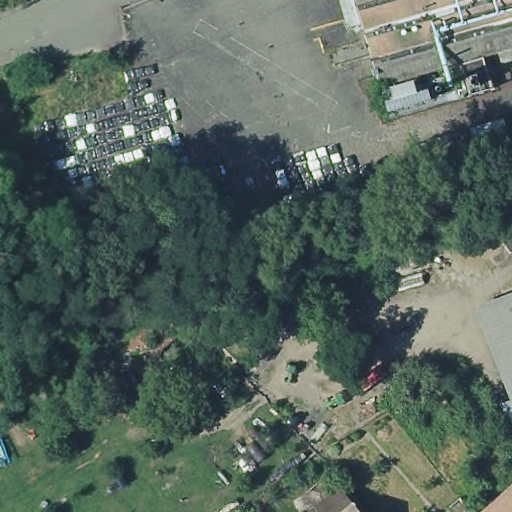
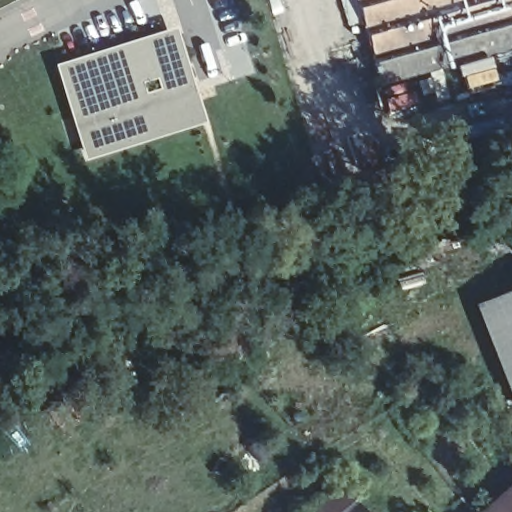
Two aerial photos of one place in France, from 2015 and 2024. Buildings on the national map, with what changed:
unchanged [(508,42),(508,40),(389,75),(371,12),(360,15),(355,0),(512,0),(512,51),(511,51),(508,42)]
new [(179,30),(209,124),(84,162),(56,65),(179,30)]
unchanged [(493,47),(502,79),(480,85),(471,54),(493,47)]
demolished [(50,70),(46,71),(43,62),(47,61),(50,70)]
demolished [(140,95),(162,173),(62,201),(41,124),(140,95)]
unchanged [(503,118),(511,148),(424,174),(415,144),(503,118)]
unchanged [(512,290),(512,377),(483,301),(512,290)]
unchanged [(179,348),(144,372),(143,371),(132,354),(166,331),(178,347),(179,348)]
unchanged [(226,335),(242,352),(230,365),(213,348),(226,335)]
unchanged [(363,504),(353,512),(320,512),(350,489),(363,504)]
unchanged [(488,512),(512,491),(512,512),(488,512)]
unchanged [(369,512),(353,512),(363,504),(369,512)]

